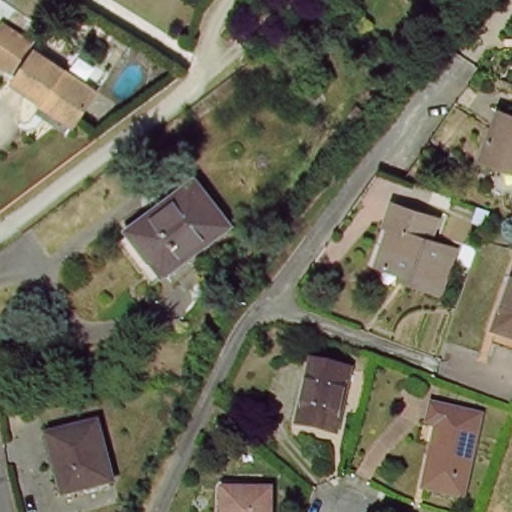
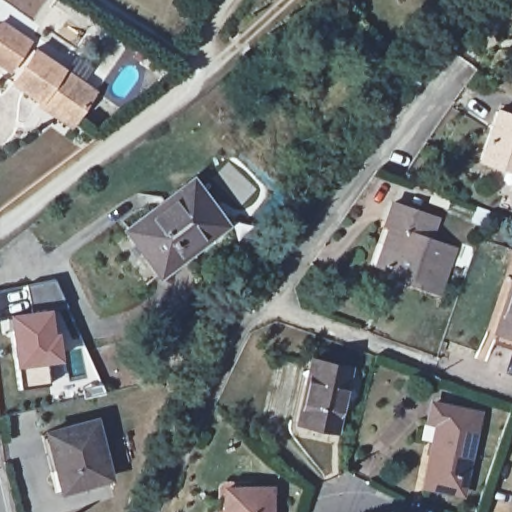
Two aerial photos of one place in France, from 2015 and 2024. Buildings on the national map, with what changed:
unchanged [(0,24),(1,23),(30,43),(10,71),(0,64),(0,24)]
unchanged [(40,104),(41,103),(12,83),(35,50),(96,91),(75,121),(72,126),(40,104)]
unchanged [(480,160),(497,111),(512,116),(512,171),(480,160)]
unchanged [(193,182),(226,226),(161,275),(128,230),(193,182)]
unchanged [(405,273),(388,267),(382,264),(395,227),(390,225),(397,203),(442,219),(435,240),(460,249),(445,293),(410,281),(403,279),(405,273)]
new [(58,328),(63,360),(46,363),(49,383),(22,387),(18,368),(14,369),(5,314),(30,310),(26,285),(55,279),(63,301),(51,306),(55,329),(58,328)]
unchanged [(497,338),(501,325),(512,293),(512,343),(497,338)]
unchanged [(336,431),(298,423),(312,360),(350,368),(336,431)]
unchanged [(424,486),(437,423),(430,421),(433,404),(479,414),(462,494),(424,486)]
unchanged [(110,479),(62,492),(57,470),(52,472),(42,434),(52,432),(95,420),(110,479)]
unchanged [(270,512),(227,512),(227,510),(223,510),(223,488),(270,489),(270,512)]

